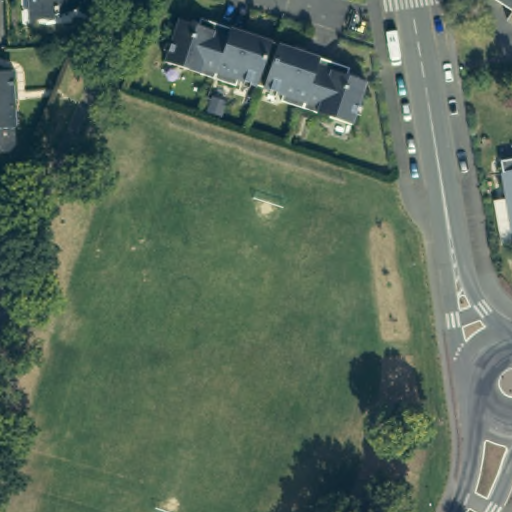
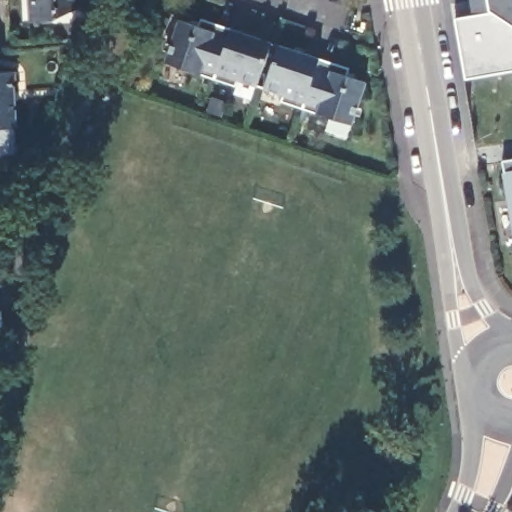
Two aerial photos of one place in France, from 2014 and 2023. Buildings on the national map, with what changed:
unchanged [(50,12),(51,24),(28,26),(26,0),(71,0),(71,12),(50,12)]
new [(471,15),(469,0),(512,0),(512,70),(466,79),(454,19),(471,15)]
demolished [(512,0),(512,11),(496,0),(512,0)]
demolished [(512,15),(512,24),(508,21),(512,15)]
unchanged [(164,62),(178,21),(197,27),(199,20),(228,29),(212,79),(164,62)]
unchanged [(237,80),(234,87),(212,79),(228,29),(269,42),(255,86),(237,80)]
unchanged [(280,102),(282,95),(263,88),(278,45),(317,57),(301,109),(280,102)]
unchanged [(348,67),(345,75),(365,82),(350,124),(301,109),(317,57),(348,67)]
unchanged [(12,72),(15,127),(0,127),(0,73),(12,72)]
unchanged [(512,165),(512,222),(502,167),(512,165)]

